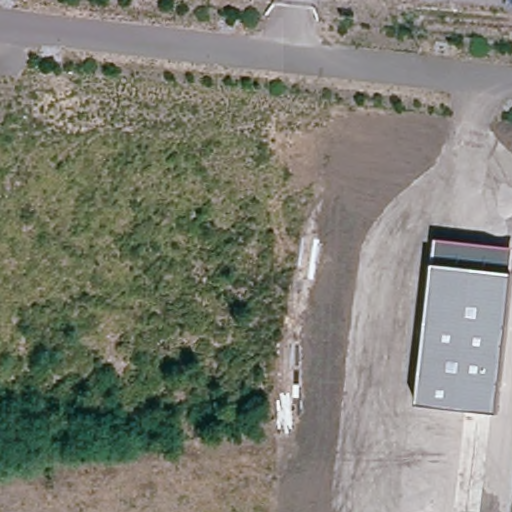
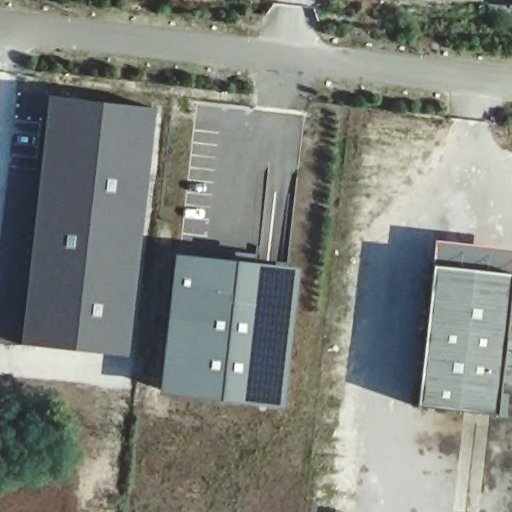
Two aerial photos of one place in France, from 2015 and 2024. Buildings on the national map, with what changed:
unchanged [(512,0),(512,5),(511,5),(512,0)]
new [(32,215),(48,94),(158,108),(149,199),(136,284),(128,358),(19,343),(32,215)]
unchanged [(418,406),(433,267),(435,242),(512,249),(512,283),(497,416),(418,406)]
new [(300,270),(284,410),(160,397),(174,254),(300,270)]

